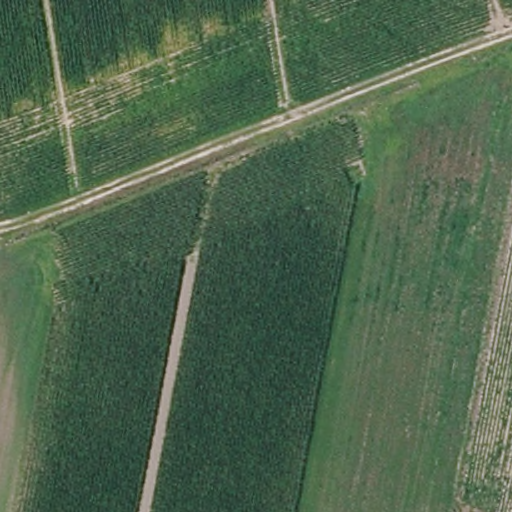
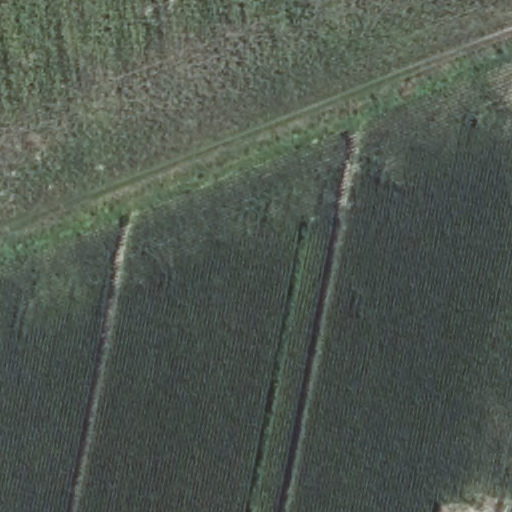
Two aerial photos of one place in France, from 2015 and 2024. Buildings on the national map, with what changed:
[]

